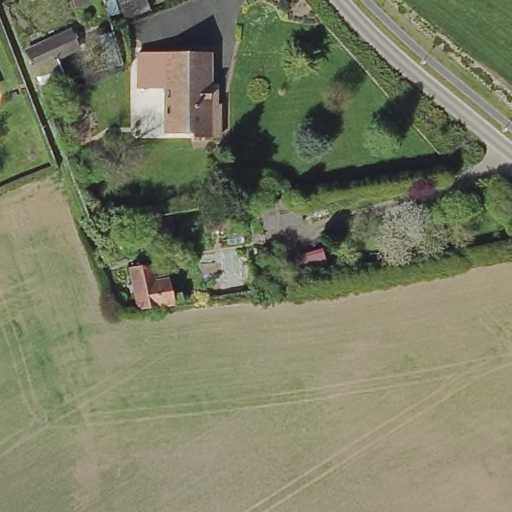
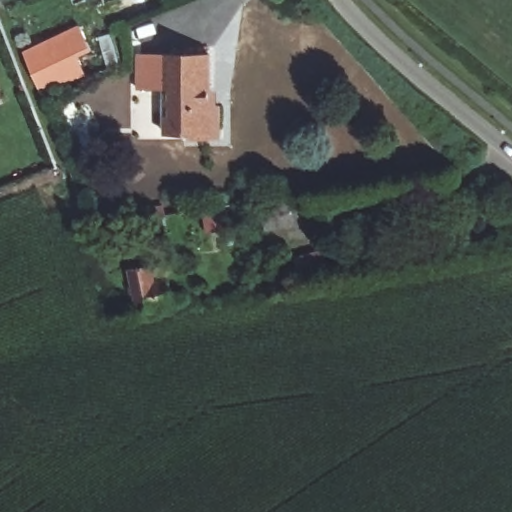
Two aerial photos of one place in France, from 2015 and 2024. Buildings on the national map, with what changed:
unchanged [(110,15),(105,0),(133,0),(135,6),(110,15)]
unchanged [(30,47),(75,25),(82,41),(58,53),(63,67),(57,70),(59,75),(44,79),(37,64),(30,47)]
unchanged [(120,54),(106,58),(98,29),(110,25),(120,54)]
unchanged [(197,138),(168,135),(170,81),(144,79),(146,48),(216,53),(212,106),(223,108),(221,141),(198,140),(197,138)]
unchanged [(0,91),(0,88),(1,90),(0,91)]
unchanged [(295,193),(300,226),(273,230),(268,198),(295,193)]
unchanged [(193,302),(147,310),(138,268),(173,264),(179,297),(192,294),(193,302)]

